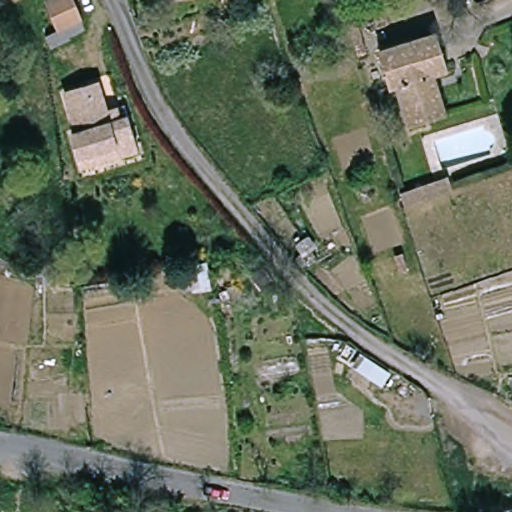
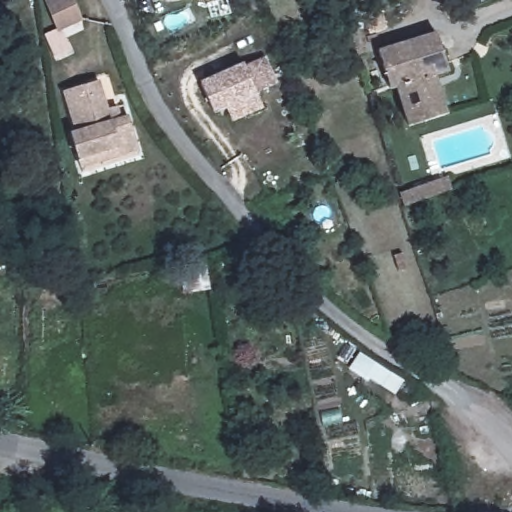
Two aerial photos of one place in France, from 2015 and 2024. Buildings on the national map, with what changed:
unchanged [(77,0),(84,20),(57,31),(47,0),(48,0),(77,0)]
unchanged [(437,114),(410,125),(395,85),(385,88),(374,53),(432,30),(445,68),(435,71),(448,110),(437,114)]
new [(278,85),(258,94),(265,109),(234,122),(229,108),(214,114),(200,81),(244,62),(246,65),(267,56),(278,85)]
unchanged [(85,170),(83,161),(72,123),(77,121),(70,92),(105,82),(112,111),(122,109),(126,120),(132,119),(138,140),(142,155),(85,170)]
unchanged [(408,189),(448,177),(452,190),(412,203),(408,189)]
unchanged [(186,262),(214,261),(215,291),(187,292),(186,262)]

